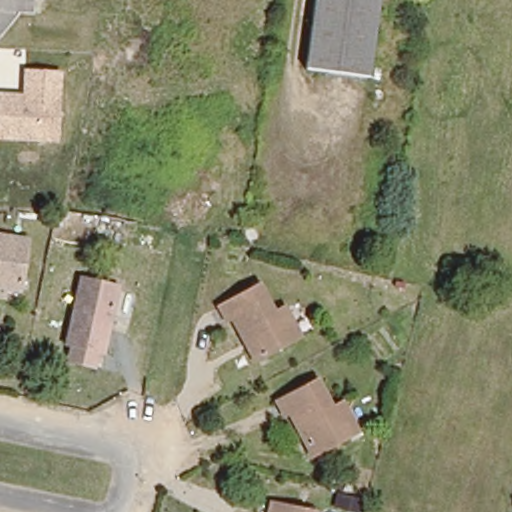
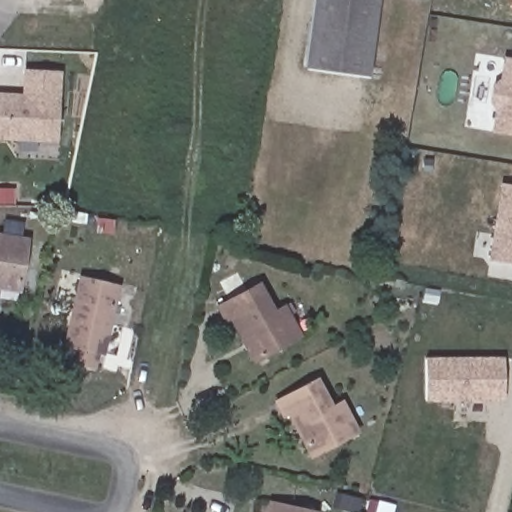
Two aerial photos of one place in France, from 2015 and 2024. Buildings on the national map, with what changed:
unchanged [(369,75),(305,66),(313,0),(377,0),(369,75)]
new [(512,59),(512,135),(493,132),(496,110),(491,102),(494,86),(501,81),(504,58),(512,59)]
unchanged [(25,72),(60,74),(59,122),(40,122),(39,140),(0,137),(0,97),(24,97),(25,72)]
new [(512,185),(512,265),(490,262),(500,183),(512,185)]
unchanged [(21,288),(0,284),(0,236),(32,243),(21,288)]
unchanged [(447,276),(449,262),(461,264),(459,277),(447,276)]
unchanged [(72,343),(66,342),(81,277),(118,285),(103,352),(98,351),(95,365),(69,359),(72,343)]
unchanged [(217,310),(256,287),(274,317),(283,312),(299,338),(257,363),(231,322),(225,325),(217,310)]
new [(504,356),(504,400),(427,402),(424,357),(504,356)]
unchanged [(331,405),(341,400),(358,428),(314,454),(290,416),(285,418),(277,403),(315,381),(331,405)]
unchanged [(270,512),(273,500),(316,511),(315,512),(270,512)]

